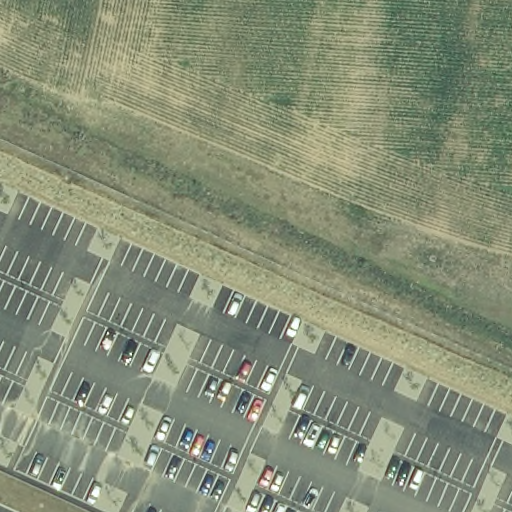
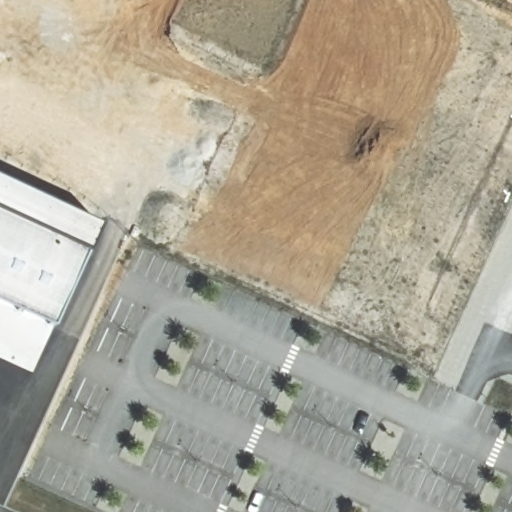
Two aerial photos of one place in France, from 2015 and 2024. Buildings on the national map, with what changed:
new [(97,224),(58,327),(0,300),(0,181),(97,224)]

